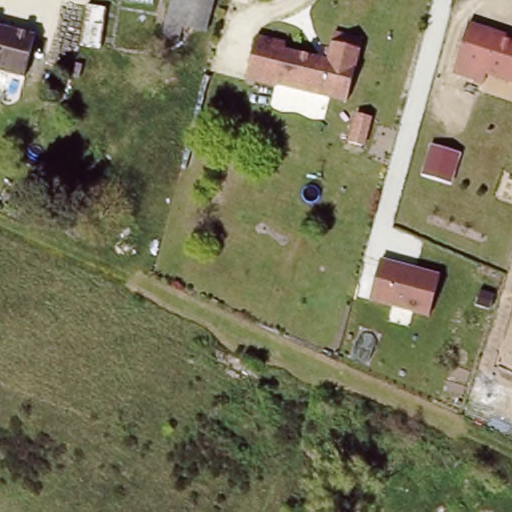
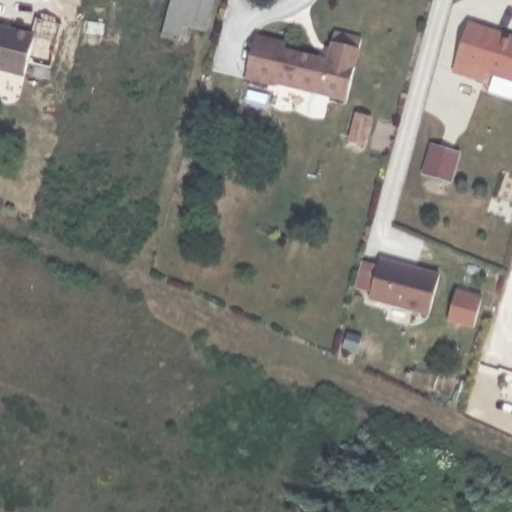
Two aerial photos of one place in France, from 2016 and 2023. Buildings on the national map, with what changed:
unchanged [(188,25),(185,41),(165,38),(175,0),(221,0),(213,29),(188,25)]
unchanged [(21,75),(0,69),(0,24),(32,31),(21,75)]
unchanged [(483,85),(481,91),(458,84),(450,81),(466,29),(475,31),(512,44),(512,94),(483,85)]
unchanged [(274,81),(273,83),(243,76),(254,33),(284,41),(282,46),(326,58),(332,30),(360,37),(344,99),(274,81)]
unchanged [(382,259),(442,276),(432,314),(371,299),(382,259)]

